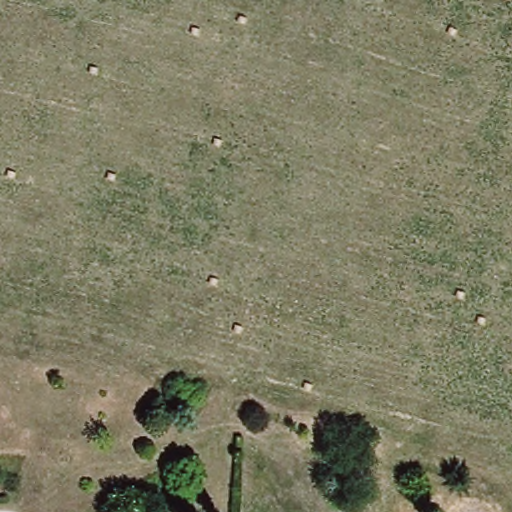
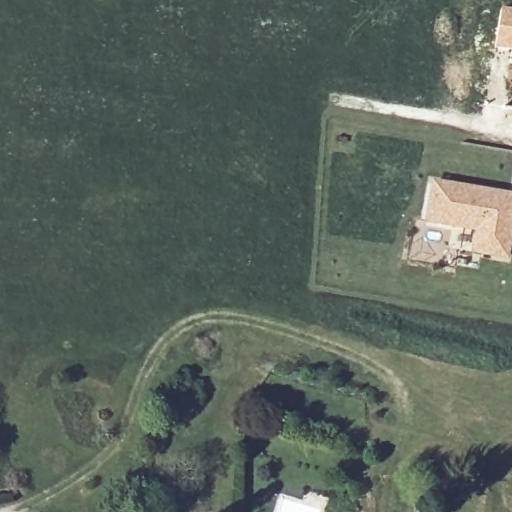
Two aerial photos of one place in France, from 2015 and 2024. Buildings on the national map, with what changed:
new [(500,6),(512,8),(512,51),(494,48),(500,6)]
new [(433,184),(512,195),(512,219),(507,256),(474,251),(478,229),(427,221),(433,184)]

